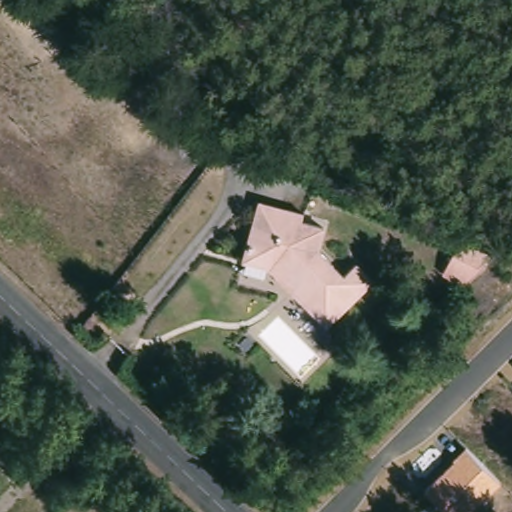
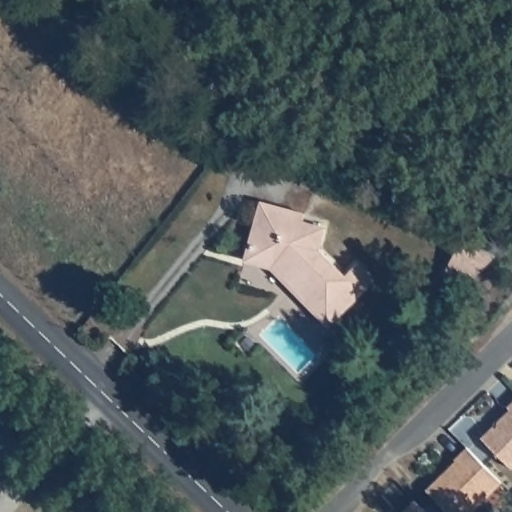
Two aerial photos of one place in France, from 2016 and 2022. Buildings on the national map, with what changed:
unchanged [(240,261),(255,203),(298,214),(296,222),(317,228),(311,250),(337,277),(350,264),(365,281),(322,324),(288,290),(267,268),(240,261)]
unchanged [(451,257),(461,238),(494,255),(477,271),(451,257)]
new [(509,408),(506,406),(512,401),(512,466),(511,467),(481,437),(509,408)]
unchanged [(465,512),(435,480),(454,461),(451,458),(465,445),(500,482),(465,512)]
new [(415,501),(426,512),(403,512),(415,501)]

